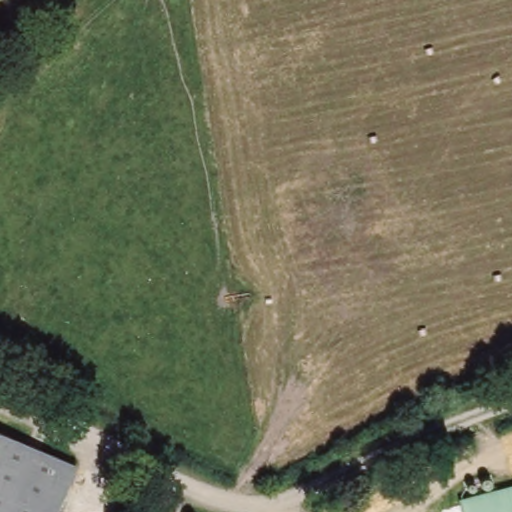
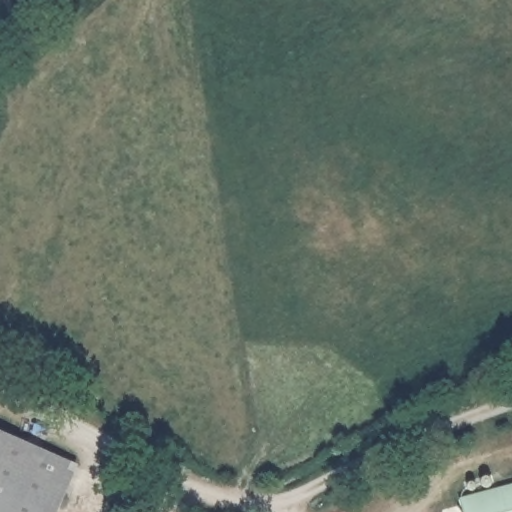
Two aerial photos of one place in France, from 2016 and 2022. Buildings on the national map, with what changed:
unchanged [(0,512),(0,433),(71,459),(50,512),(0,512)]
unchanged [(512,485),(512,512),(463,512),(460,498),(512,485)]

